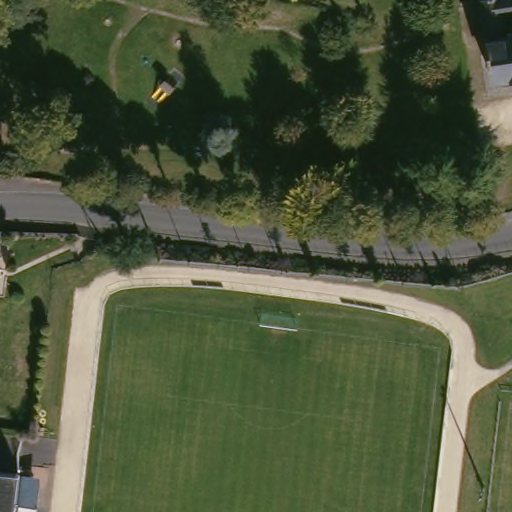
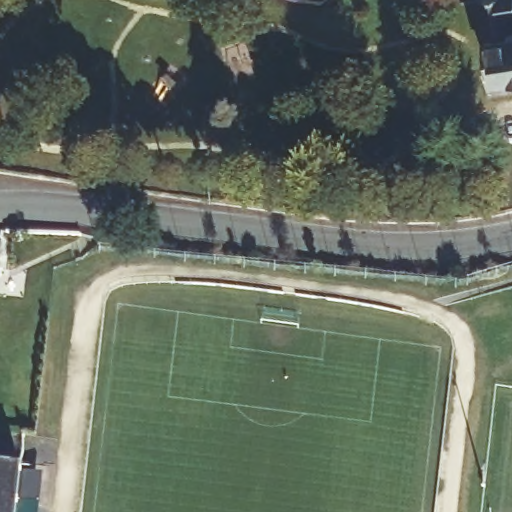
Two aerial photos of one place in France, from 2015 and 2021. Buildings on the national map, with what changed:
unchanged [(488,3),(510,0),(512,0),(512,21),(509,22),(512,42),(512,83),(497,85),(483,3),(488,3)]
unchanged [(0,247),(1,247),(0,255),(0,247)]
unchanged [(0,471),(23,471),(21,512),(0,512),(0,471)]
unchanged [(38,472),(35,512),(21,512),(23,471),(38,472)]

